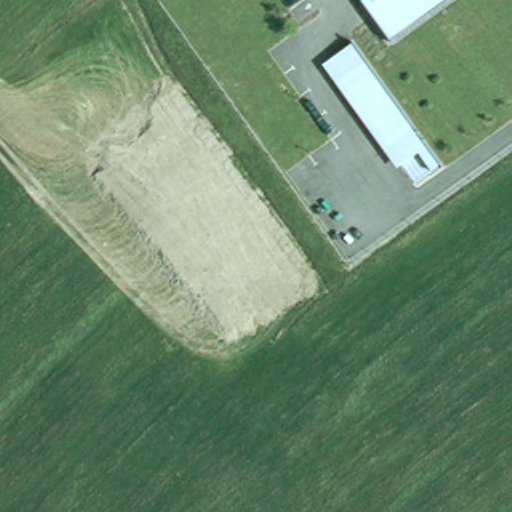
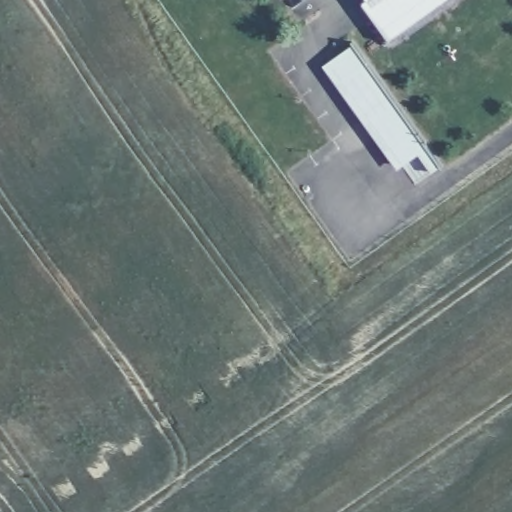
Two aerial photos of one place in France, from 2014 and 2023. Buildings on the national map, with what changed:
unchanged [(361,5),(368,0),(449,0),(389,45),(361,5)]
unchanged [(403,172),(327,67),(354,47),(441,169),(430,176),(414,188),(403,172)]

